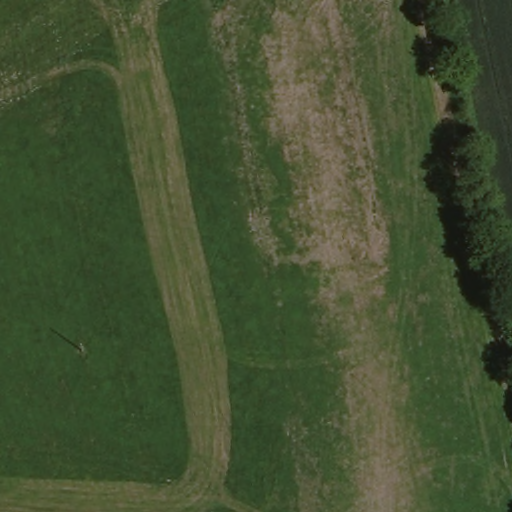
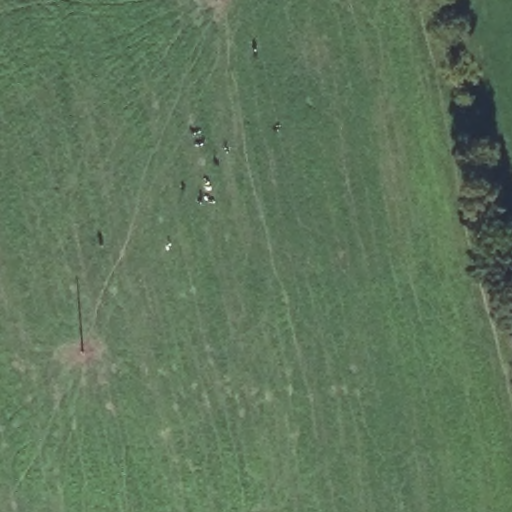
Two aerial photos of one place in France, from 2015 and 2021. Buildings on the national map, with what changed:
unchanged [(237,0),(238,3),(231,6),(213,12),(210,0),(237,0)]

